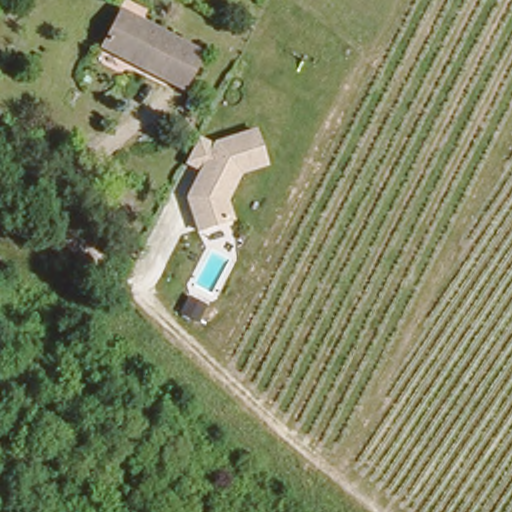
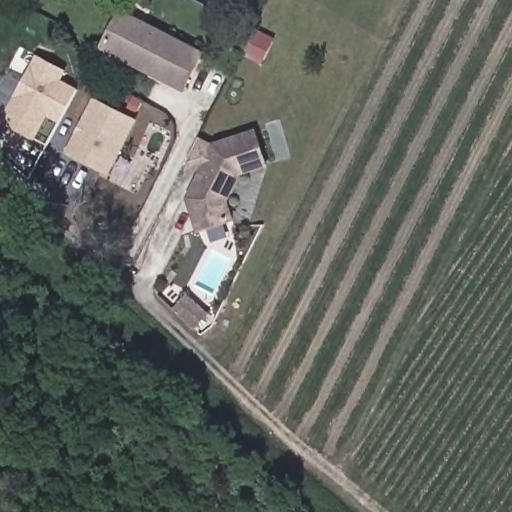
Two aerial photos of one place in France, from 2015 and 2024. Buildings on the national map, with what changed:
unchanged [(204,53),(183,89),(108,48),(126,12),(204,53)]
new [(79,88),(60,123),(49,116),(36,140),(2,122),(4,118),(0,116),(0,92),(10,72),(24,80),(38,54),(68,70),(63,79),(79,88)]
new [(109,176),(64,153),(93,97),(136,119),(109,176)]
unchanged [(270,165),(244,175),(232,202),(239,221),(199,233),(188,199),(200,170),(187,164),(199,135),(216,142),(258,128),(270,165)]
new [(194,328),(183,319),(173,310),(185,295),(196,303),(207,313),(194,328)]

